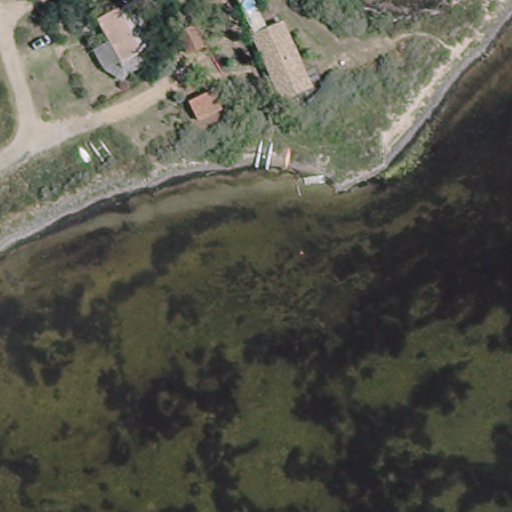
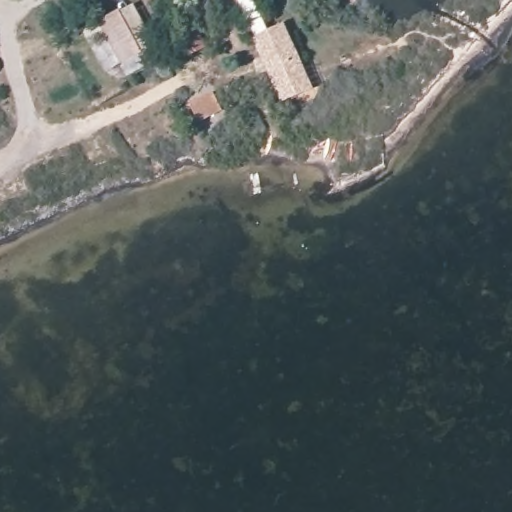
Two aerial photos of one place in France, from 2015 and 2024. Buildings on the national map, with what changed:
unchanged [(293,99),(254,12),(249,0),(262,0),(266,6),(277,33),(291,27),(318,87),(293,99)]
unchanged [(121,60),(96,19),(116,7),(141,49),(121,60)]
unchanged [(182,52),(173,32),(191,25),(200,44),(182,52)]
unchanged [(205,114),(198,100),(213,92),(219,106),(205,114)]

